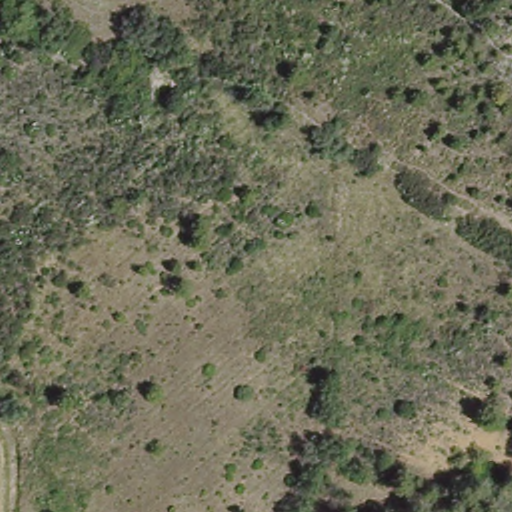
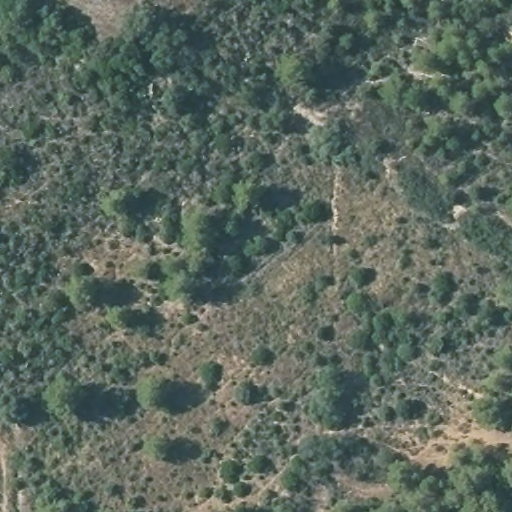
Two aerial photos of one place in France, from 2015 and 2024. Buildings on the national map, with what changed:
unchanged [(189,93),(169,82),(179,64),(181,64),(199,76),(189,93)]

